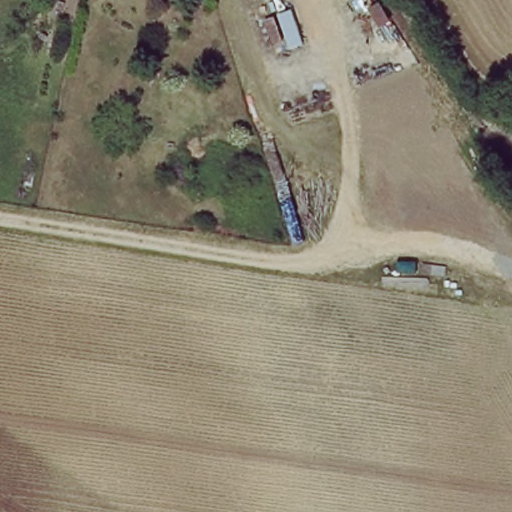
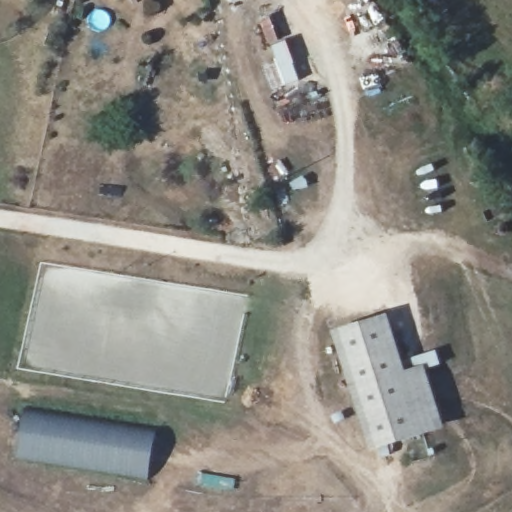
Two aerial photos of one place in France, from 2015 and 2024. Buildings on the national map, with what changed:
new [(443,429),(370,451),(332,332),(387,313),(405,372),(423,365),(443,429)]
new [(25,409),(157,429),(149,480),(17,457),(25,409)]

